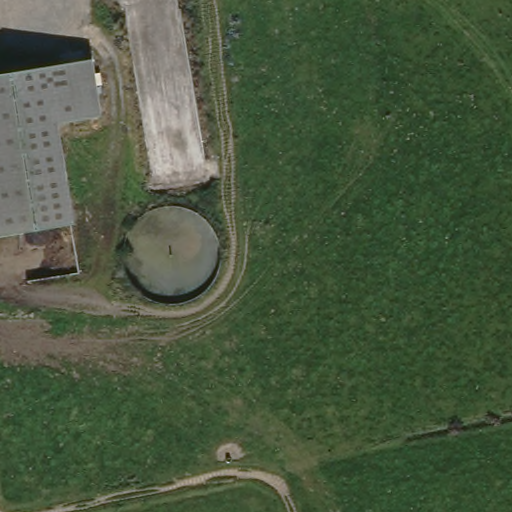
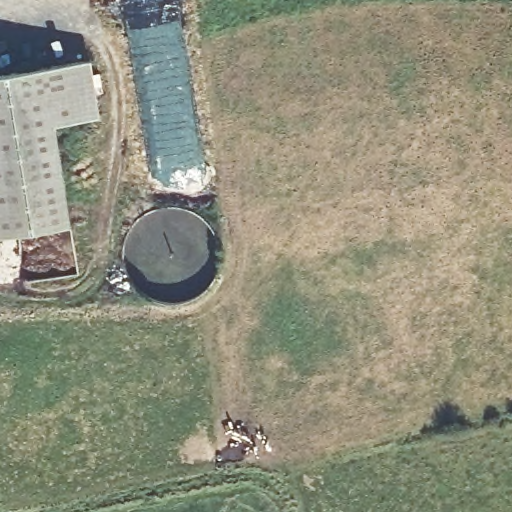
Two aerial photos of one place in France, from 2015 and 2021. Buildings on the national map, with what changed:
unchanged [(107,114),(60,119),(78,222),(75,223),(0,233),(0,68),(95,54),(107,114)]

